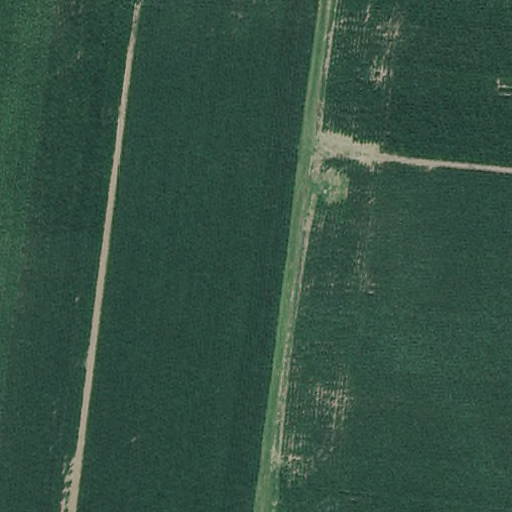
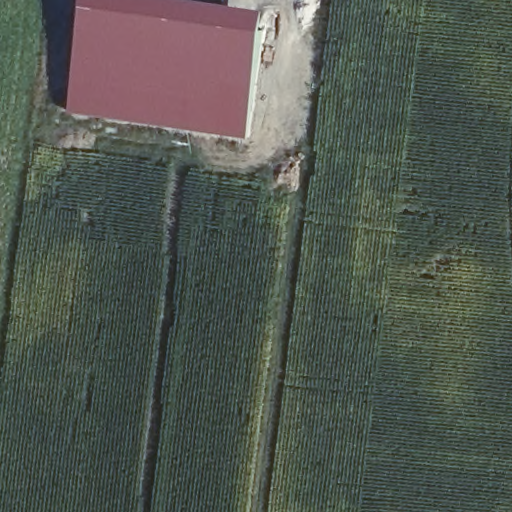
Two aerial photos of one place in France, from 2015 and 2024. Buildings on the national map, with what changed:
new [(85,0),(207,0),(265,9),(252,90),(247,136),(152,125),(71,113),(85,0)]

